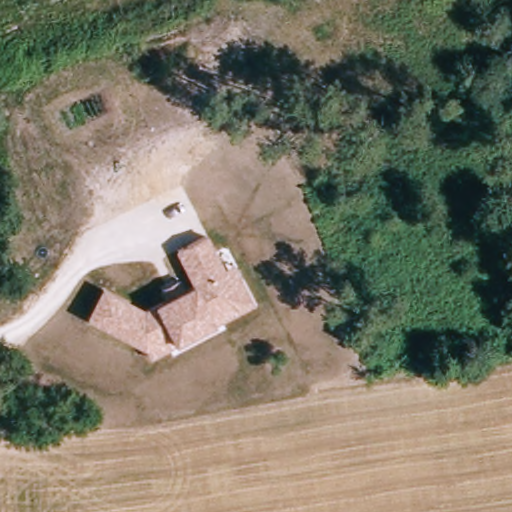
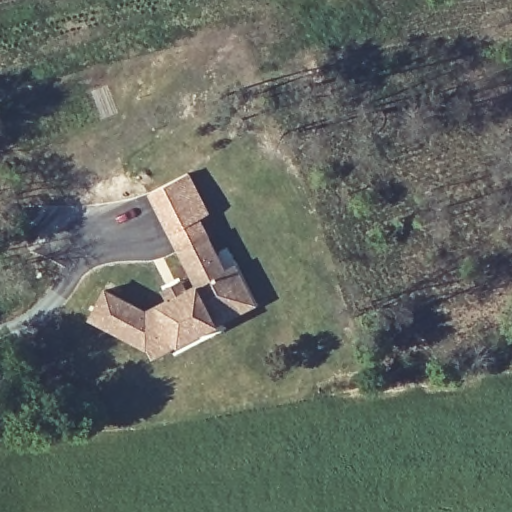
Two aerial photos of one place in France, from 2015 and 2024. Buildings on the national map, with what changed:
new [(149,192),(188,173),(209,212),(200,216),(208,236),(178,249),(169,232),(149,192)]
unchanged [(148,348),(90,318),(105,286),(145,308),(167,297),(162,288),(182,278),(187,287),(195,283),(178,249),(211,235),(226,267),(239,261),(260,302),(219,322),(178,345),(153,357),(148,348)]

